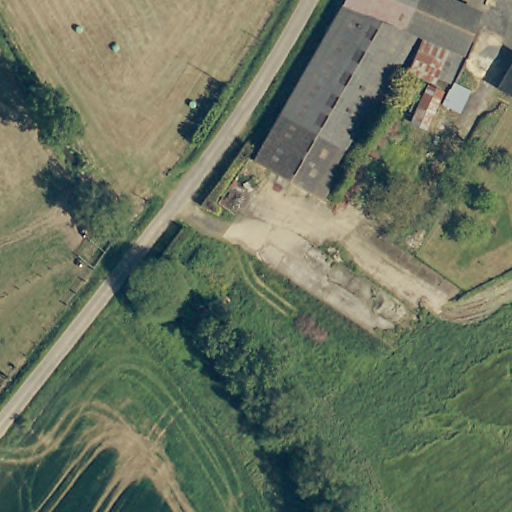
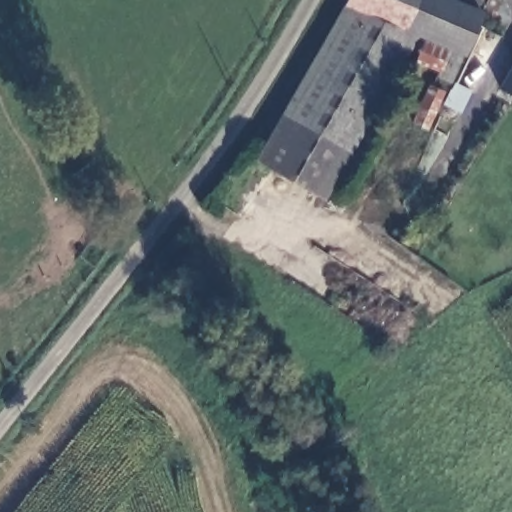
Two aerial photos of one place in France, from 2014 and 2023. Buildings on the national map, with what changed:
unchanged [(344,4),(346,0),(455,0),(481,10),(451,81),(434,75),(433,80),(408,70),(422,35),(402,27),(344,4)]
unchanged [(313,188),(257,156),(344,4),(402,27),(313,188)]
unchanged [(501,87),(512,65),(512,93),(501,87)]
unchanged [(445,105),(457,84),(472,90),(460,112),(445,105)]
unchanged [(427,130),(411,122),(430,85),(445,94),(427,130)]

